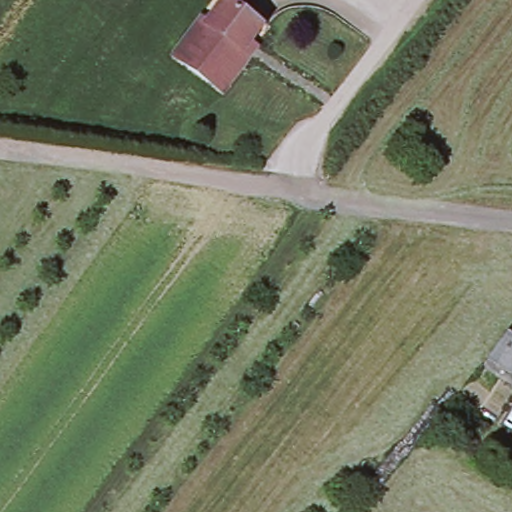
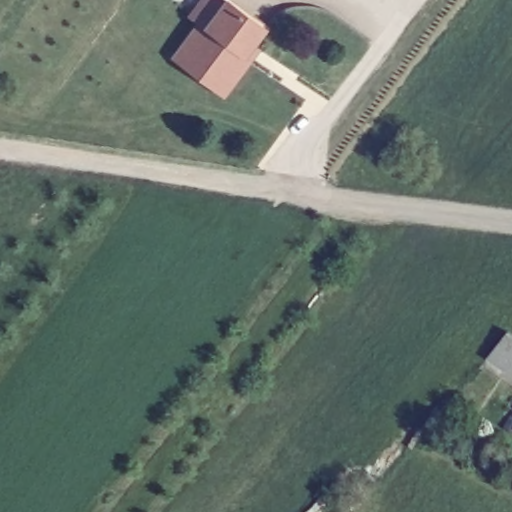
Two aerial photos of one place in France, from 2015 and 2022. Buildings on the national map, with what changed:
unchanged [(244,57),(250,61),(223,98),(175,62),(202,25),(207,30),(225,6),(262,33),(244,57)]
unchanged [(487,357),(509,332),(512,334),(512,373),(487,357)]

